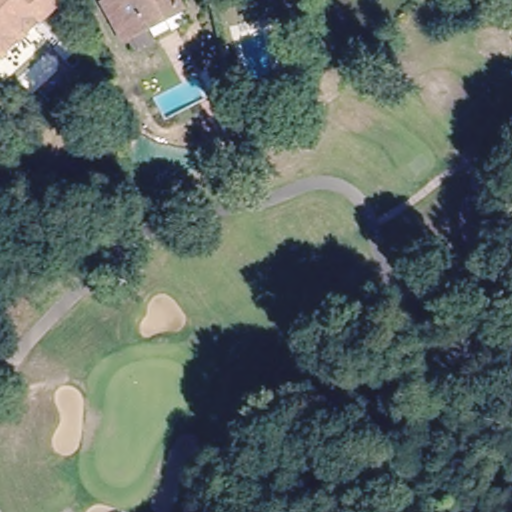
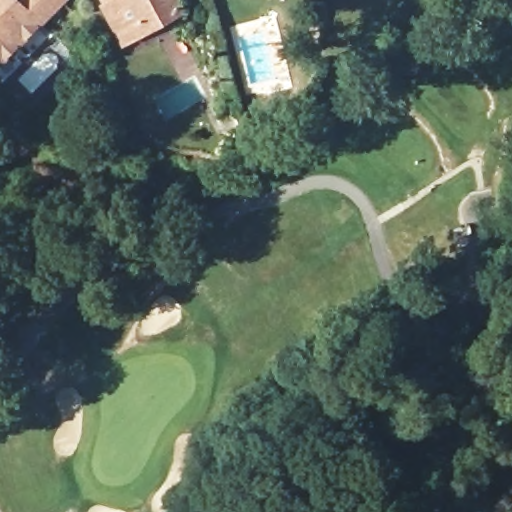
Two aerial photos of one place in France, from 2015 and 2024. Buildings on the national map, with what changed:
unchanged [(8,55),(0,46),(0,0),(66,0),(8,55)]
unchanged [(117,21),(105,0),(181,0),(181,1),(144,21),(123,33),(117,21)]
unchanged [(81,64),(74,71),(66,63),(74,56),(81,64)]

